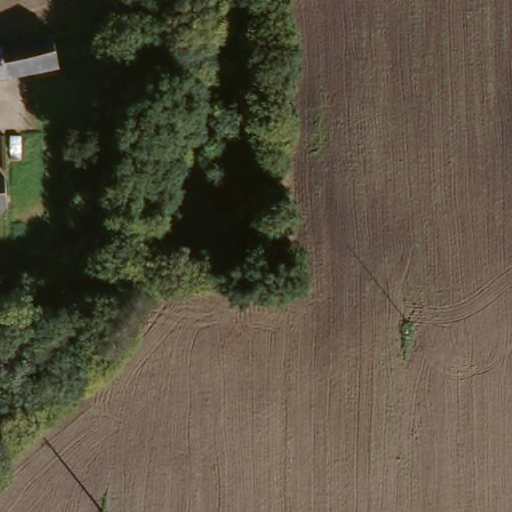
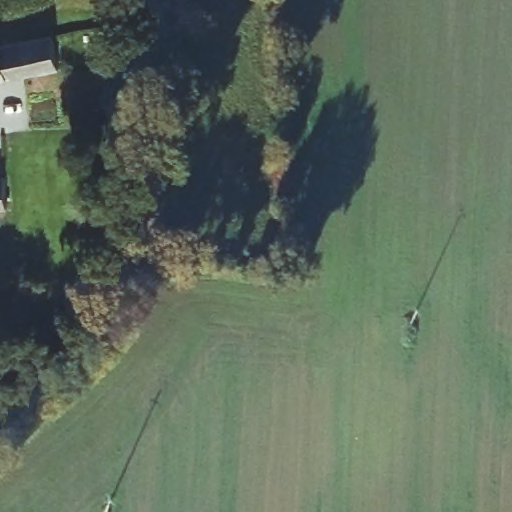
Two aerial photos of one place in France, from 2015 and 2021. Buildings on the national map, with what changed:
unchanged [(0,49),(67,36),(69,71),(1,84),(0,84),(0,49)]
unchanged [(2,206),(0,206),(0,177),(1,177),(2,206)]

